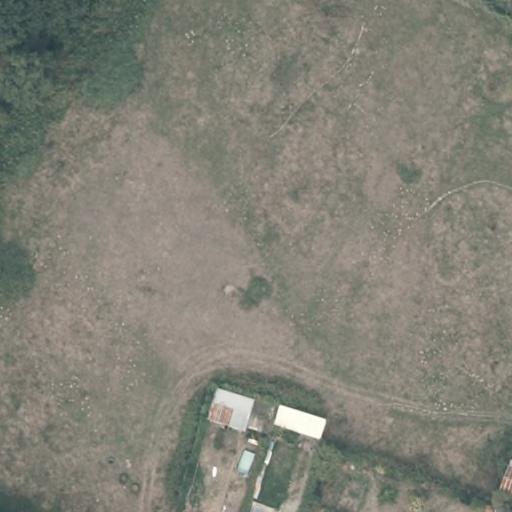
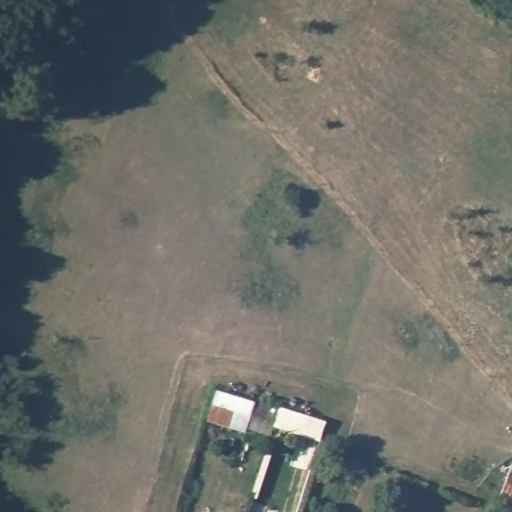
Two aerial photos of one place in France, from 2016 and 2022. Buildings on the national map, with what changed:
unchanged [(217,386),(330,420),(324,441),(275,426),(271,441),(206,421),(217,386)]
unchanged [(507,464),(512,466),(512,506),(493,498),(507,464)]

